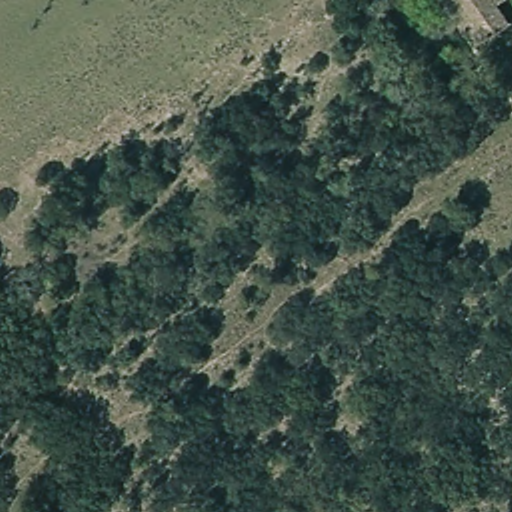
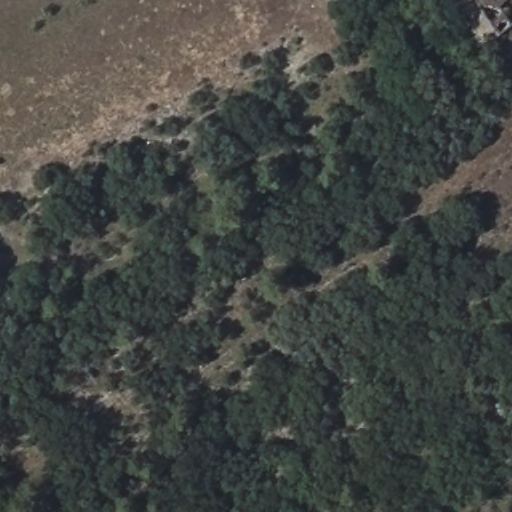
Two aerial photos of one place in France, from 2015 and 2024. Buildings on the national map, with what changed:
unchanged [(512,0),(506,5),(512,15),(512,28),(481,50),(448,0),(512,0)]

